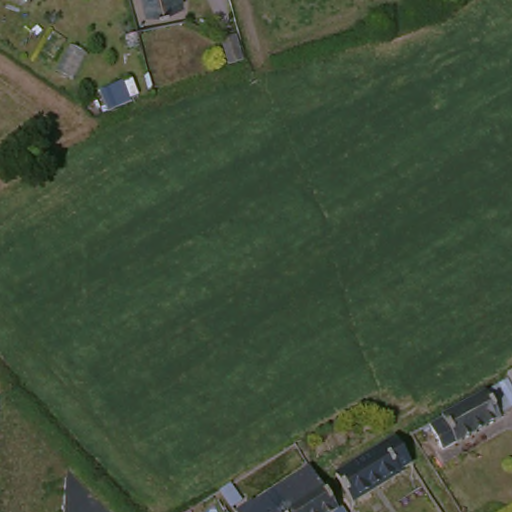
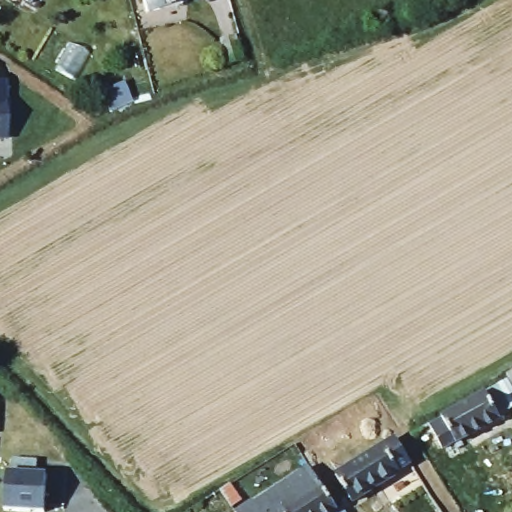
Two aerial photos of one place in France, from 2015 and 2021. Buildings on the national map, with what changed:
unchanged [(145,6),(144,0),(168,0),(145,6)]
unchanged [(242,25),(242,26),(250,52),(234,56),(227,31),(242,25)]
new [(5,80),(7,140),(0,140),(0,80),(5,80)]
unchanged [(498,422),(455,449),(453,446),(440,455),(425,430),(505,379),(505,377),(512,373),(512,389),(511,389),(512,391),(512,410),(496,419),(498,422)]
unchanged [(391,439),(405,460),(393,465),(396,473),(350,500),(342,485),(335,489),(329,477),(391,439)]
new [(5,469),(5,455),(30,457),(29,471),(40,471),(37,509),(0,507),(0,469),(5,469)]
unchanged [(272,512),(320,482),(337,507),(340,506),(344,512),(272,512)]

